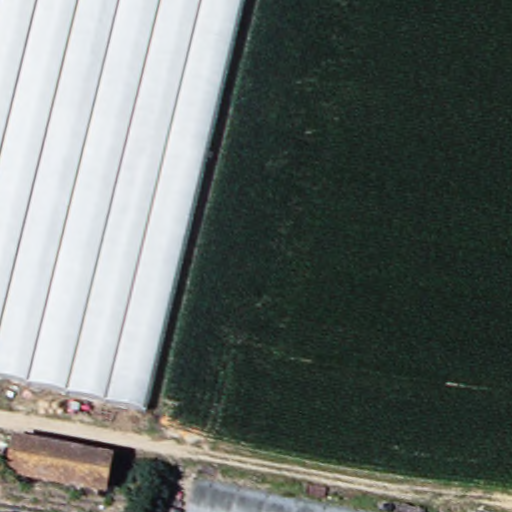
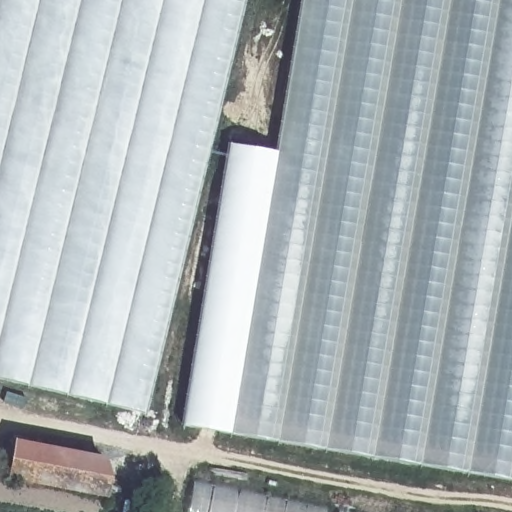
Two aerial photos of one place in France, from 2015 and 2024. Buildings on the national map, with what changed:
new [(145,415),(0,381),(0,0),(246,0),(145,415)]
new [(230,145),(277,152),(302,0),(512,0),(512,480),(183,426),(230,145)]
unchanged [(107,460),(120,480),(103,492),(12,475),(20,443),(107,460)]
unchanged [(189,512),(198,476),(367,512),(189,512)]

